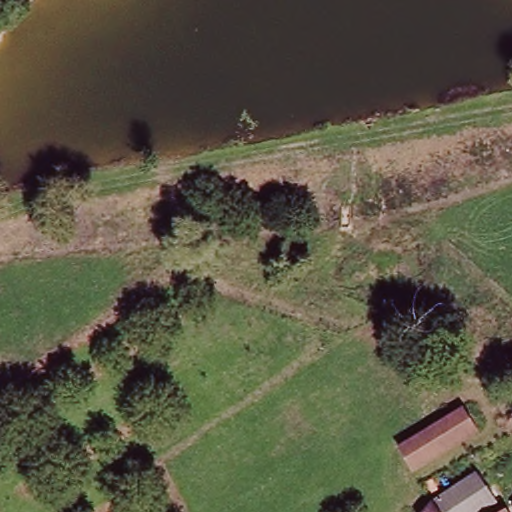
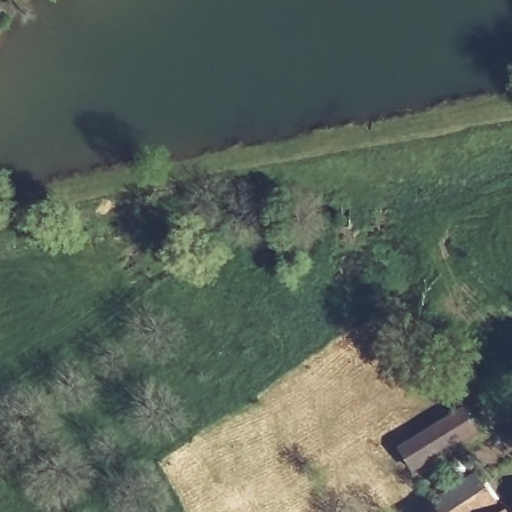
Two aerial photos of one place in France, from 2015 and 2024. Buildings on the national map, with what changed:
unchanged [(397,446),(459,405),(472,426),(412,466),(397,446)]
unchanged [(440,491),(484,463),(500,489),(463,512),(422,512),(427,506),(440,491)]
unchanged [(512,512),(503,512),(512,507),(512,512)]

